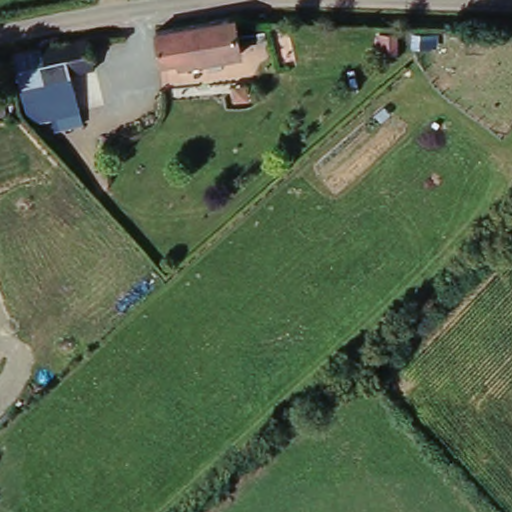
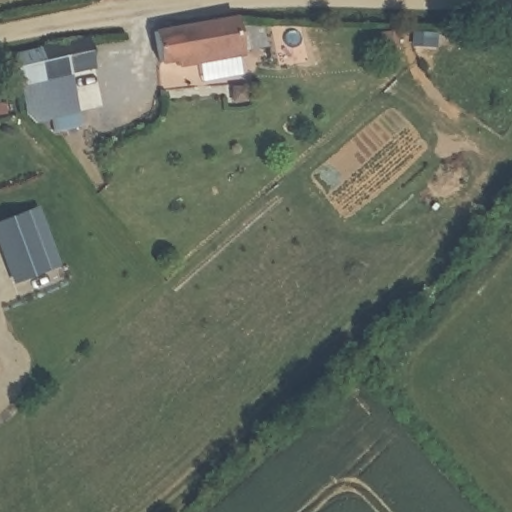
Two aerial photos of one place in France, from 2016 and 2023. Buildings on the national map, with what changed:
unchanged [(240,62),(160,71),(157,33),(180,30),(236,21),(240,62)]
unchanged [(96,71),(73,77),(82,126),(56,133),(52,120),(26,122),(14,60),(91,46),(96,71)]
new [(0,250),(0,222),(37,207),(62,265),(13,285),(0,250)]

